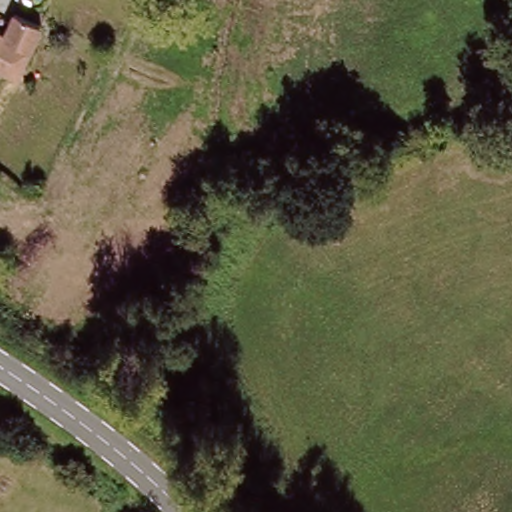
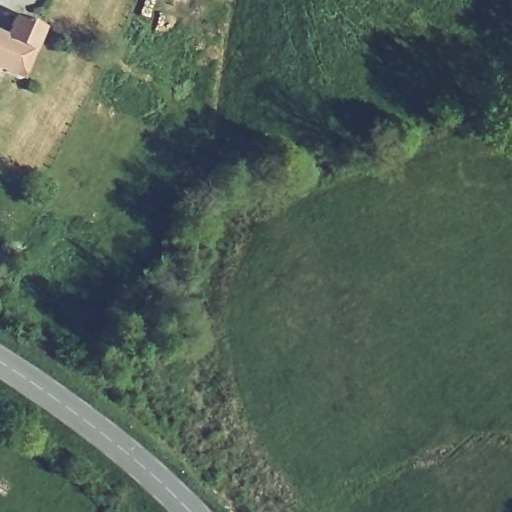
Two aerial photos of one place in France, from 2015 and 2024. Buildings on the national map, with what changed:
unchanged [(14,20),(39,31),(16,79),(0,71),(0,34),(6,37),(14,20)]

